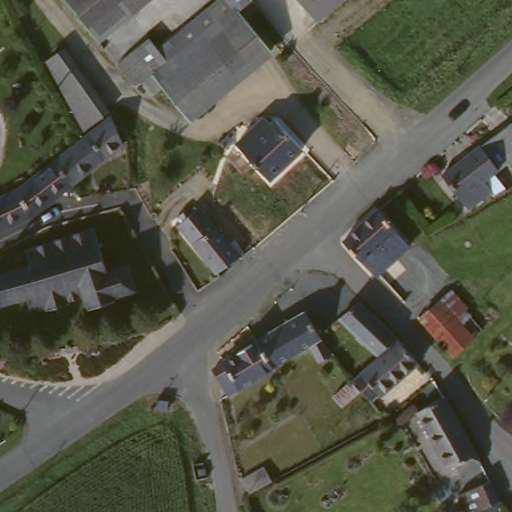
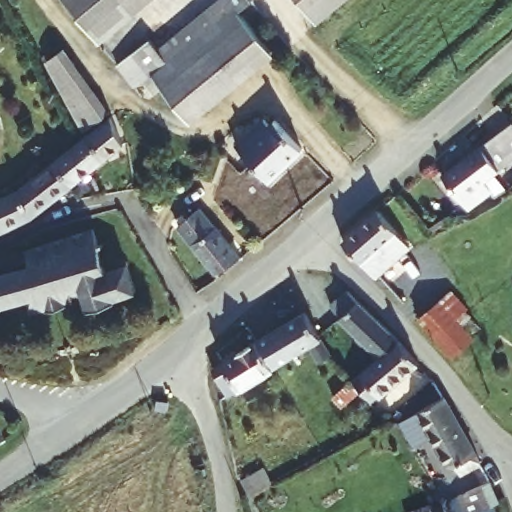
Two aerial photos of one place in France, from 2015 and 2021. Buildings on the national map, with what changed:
unchanged [(142,2),(127,14),(107,29),(94,40),(62,0),(144,0),(142,2)]
unchanged [(159,81),(159,80),(143,93),(132,80),(123,70),(126,67),(146,50),(155,42),(165,54),(179,42),(215,12),(228,0),(253,0),(257,5),(242,17),(270,52),(258,62),(222,93),(189,121),(159,81)]
unchanged [(317,19),(301,0),(340,0),(317,19)]
unchanged [(76,49),(111,116),(86,134),(49,62),(76,49)]
unchanged [(274,126),(282,118),(305,144),(296,152),(270,175),(239,142),(266,117),(274,126)]
unchanged [(85,139),(108,124),(120,153),(68,188),(50,164),(85,139)]
unchanged [(512,134),(512,165),(508,161),(486,177),(468,151),(505,125),(512,134)]
unchanged [(475,186),(483,196),(463,211),(435,174),(468,151),(486,177),(475,186)]
unchanged [(50,164),(68,188),(27,216),(17,205),(19,204),(10,192),(50,164)]
unchanged [(9,192),(10,192),(19,204),(17,205),(27,216),(0,227),(0,197),(9,192)]
unchanged [(217,274),(191,242),(174,223),(181,217),(182,218),(198,206),(210,220),(214,224),(240,255),(217,274)]
unchanged [(372,207),(405,247),(372,276),(340,239),(372,207)]
unchanged [(37,262),(34,248),(96,229),(115,270),(133,264),(141,287),(118,293),(119,297),(95,303),(90,291),(73,296),(74,298),(52,305),(51,302),(36,307),(32,295),(0,304),(0,273),(37,262)]
unchanged [(463,356),(445,336),(425,312),(447,292),(468,317),(485,336),(463,356)]
unchanged [(337,320),(356,301),(391,340),(372,357),(337,320)]
unchanged [(305,313),(333,354),(322,362),(312,349),(277,371),(258,339),(305,313)]
unchanged [(230,355),(258,339),(277,371),(228,398),(225,387),(212,367),(230,355)]
unchanged [(372,357),(391,340),(413,363),(365,402),(348,377),(372,357)]
unchanged [(431,399),(471,462),(453,474),(450,468),(444,472),(406,416),(431,399)]
unchanged [(490,507),(482,512),(461,512),(453,498),(483,481),(490,507)]

